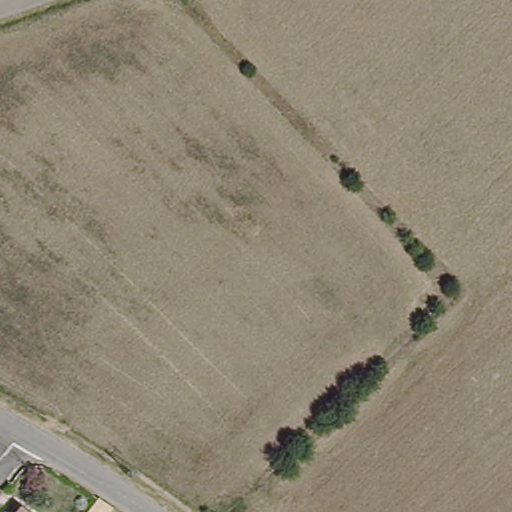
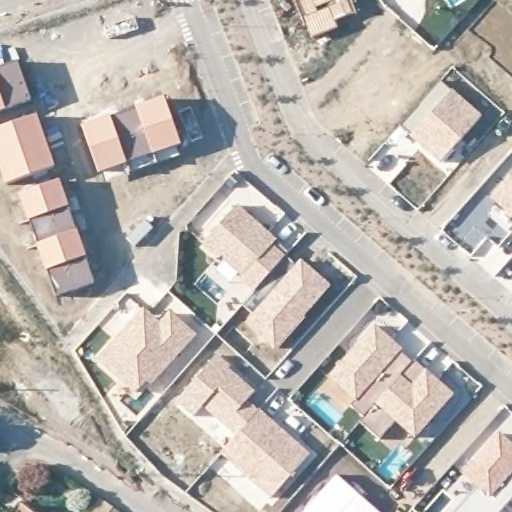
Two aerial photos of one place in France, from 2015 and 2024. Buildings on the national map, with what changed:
new [(356,13),(335,21),(338,28),(311,38),(296,0),(351,0),(356,13)]
new [(17,60),(31,101),(5,111),(0,94),(0,66),(17,60)]
new [(441,81),(482,116),(440,164),(401,127),(441,81)]
new [(5,111),(0,112),(0,94),(5,111)]
new [(165,97),(182,147),(175,149),(178,156),(150,166),(147,160),(127,165),(110,115),(165,97)]
new [(37,114),(55,167),(5,185),(0,169),(0,127),(37,114)]
new [(110,115),(127,165),(97,175),(80,124),(110,115)]
new [(512,219),(487,196),(512,170),(512,219)]
new [(60,180),(70,208),(28,222),(20,193),(60,180)]
new [(277,240),(275,243),(275,244),(288,256),(286,258),(295,265),(301,260),(331,287),(305,317),(307,318),(276,352),(245,324),(252,315),(243,307),(255,293),(240,280),(241,277),(220,259),(218,261),(201,246),(238,207),(277,240)]
new [(70,208),(77,229),(36,244),(28,222),(70,208)]
new [(77,229),(87,257),(46,272),(36,244),(77,229)]
new [(87,257),(95,283),(57,297),(46,272),(87,257)]
new [(140,307),(157,319),(168,307),(171,309),(176,313),(199,334),(136,399),(92,359),(140,307)]
new [(372,322),(402,350),(353,403),(326,379),(372,322)]
new [(363,417),(350,406),(353,403),(402,350),(455,394),(414,439),(395,423),(380,439),(360,422),(363,418),(363,417)]
new [(231,367),(230,369),(256,393),(248,402),(258,412),(260,410),(310,456),(271,499),(220,454),(236,436),(204,408),(193,418),(176,402),(219,356),(231,367)]
new [(512,500),(501,512),(458,512),(477,490),(461,475),(498,434),(512,445),(512,500)]
new [(380,512),(303,512),(336,475),(380,512)]
unchanged [(25,512),(14,512),(18,507),(25,512)]
new [(106,512),(98,512),(101,508),(106,512)]

